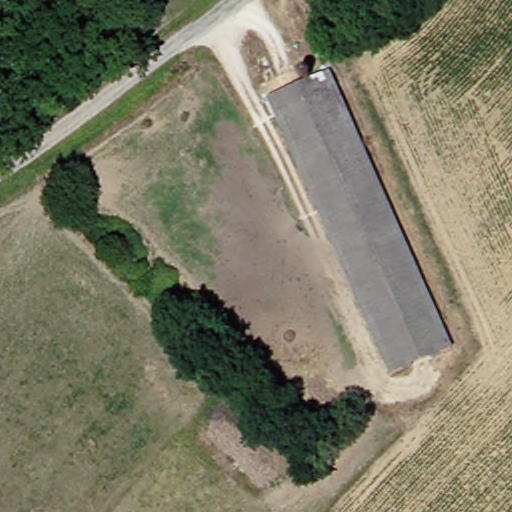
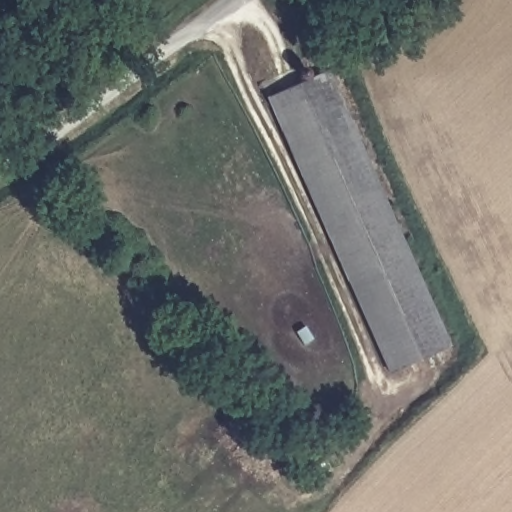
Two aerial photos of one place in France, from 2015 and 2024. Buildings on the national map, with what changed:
unchanged [(444,351),(383,377),(258,104),(318,76),(444,351)]

